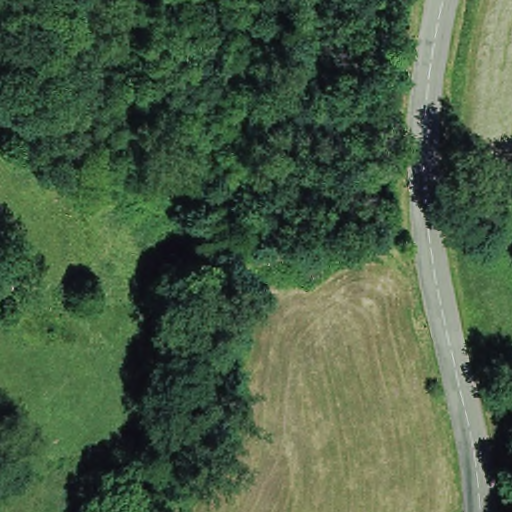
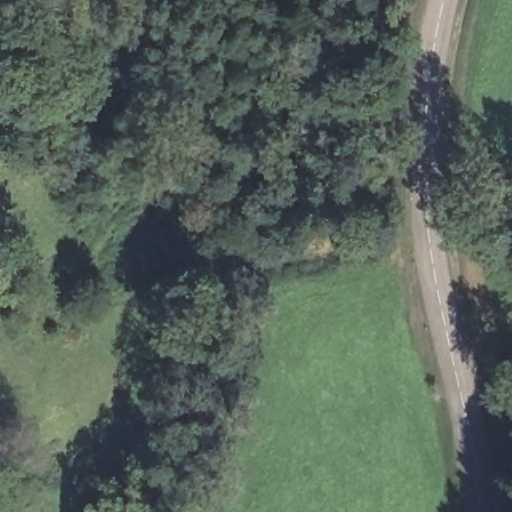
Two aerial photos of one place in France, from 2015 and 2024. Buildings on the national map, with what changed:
unchanged [(391,44),(388,95),(382,95),(370,93),(371,44),(391,44)]

